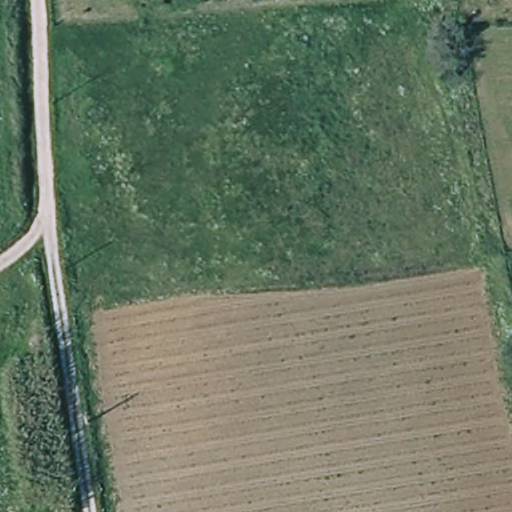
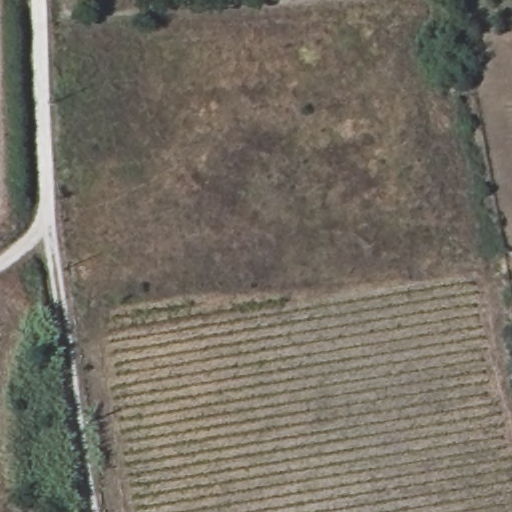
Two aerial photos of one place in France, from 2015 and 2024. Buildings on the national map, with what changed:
unchanged [(31,474),(28,454),(47,452),(49,471),(31,474)]

